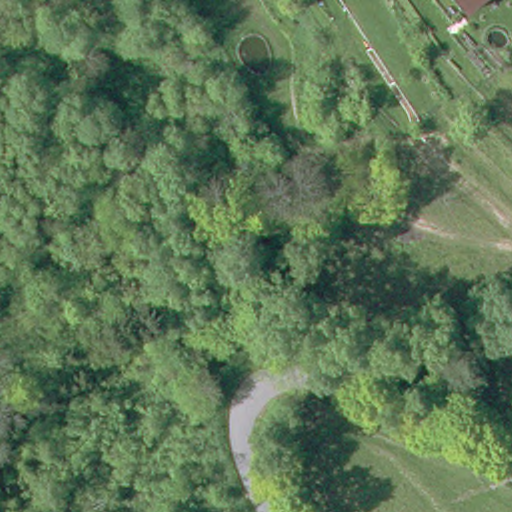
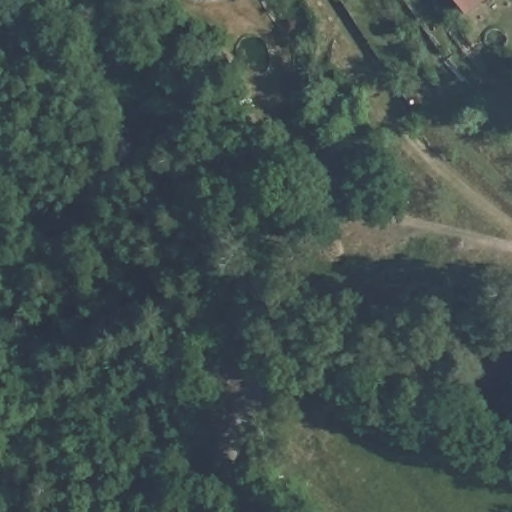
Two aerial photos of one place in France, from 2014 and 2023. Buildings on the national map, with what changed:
unchanged [(464,0),(478,0),(470,6),(464,0)]

